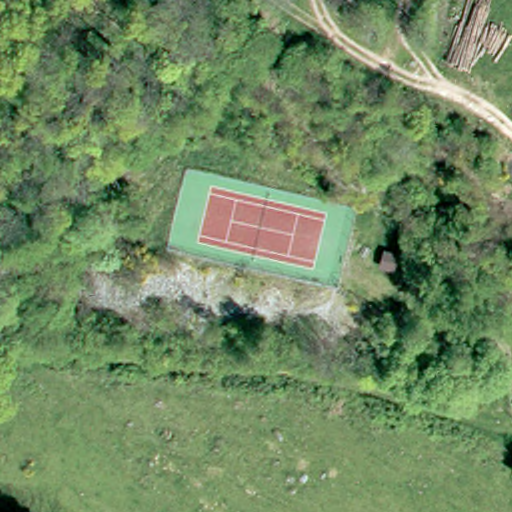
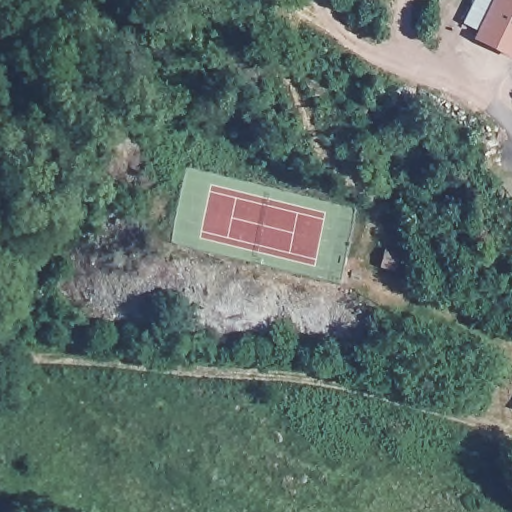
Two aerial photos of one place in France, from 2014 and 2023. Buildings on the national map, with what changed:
new [(512,58),(472,40),(476,30),(462,22),(473,0),(512,0),(512,57),(512,58)]
unchanged [(396,271),(384,268),(388,254),(399,257),(396,271)]

